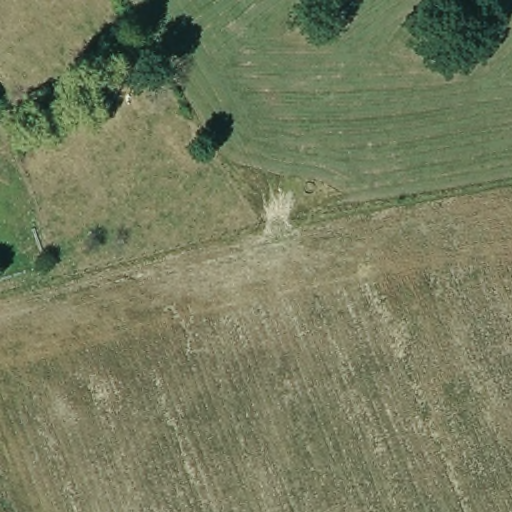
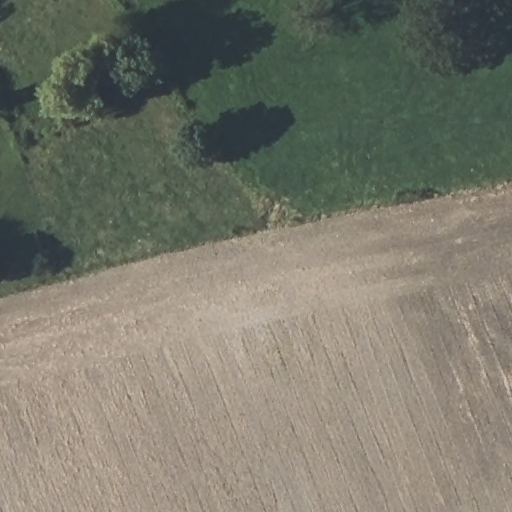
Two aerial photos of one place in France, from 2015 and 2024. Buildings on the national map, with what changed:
[]

